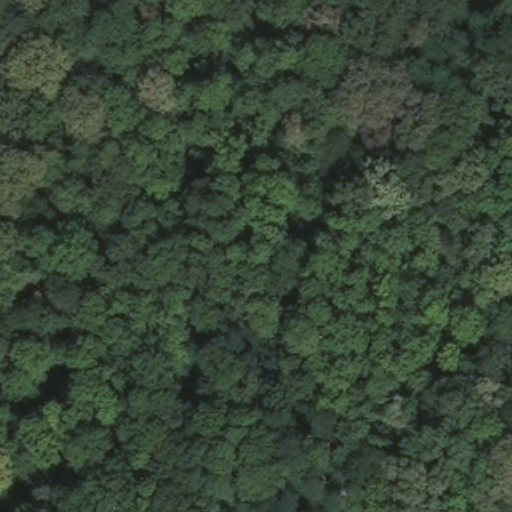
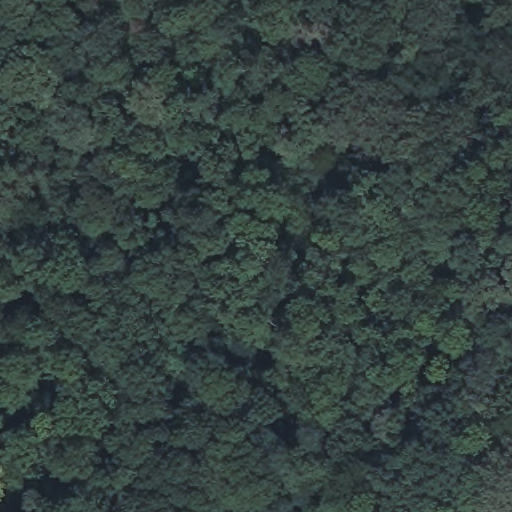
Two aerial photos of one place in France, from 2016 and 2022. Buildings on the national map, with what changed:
unchanged [(76,332),(80,358),(51,362),(46,337),(76,332)]

